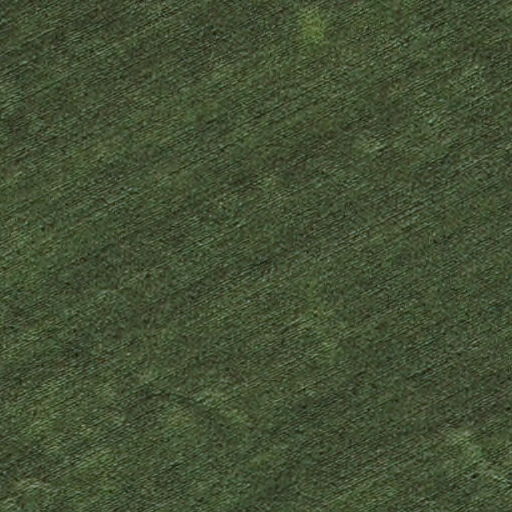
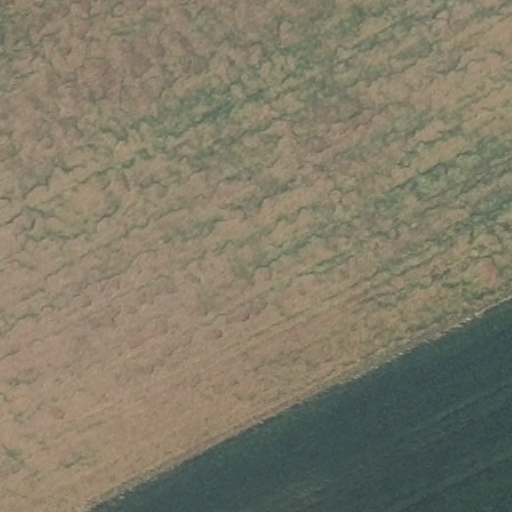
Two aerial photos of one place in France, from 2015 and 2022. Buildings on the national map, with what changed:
[]

